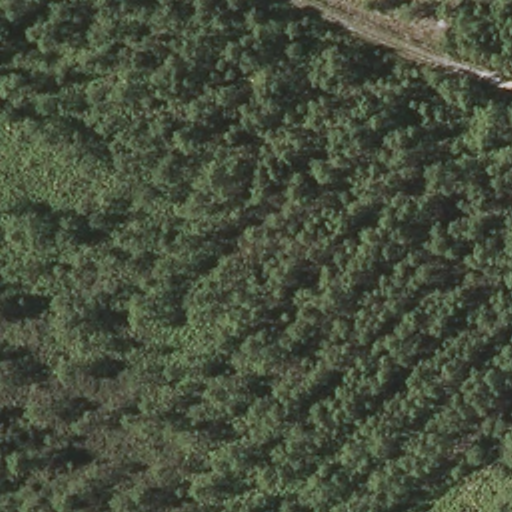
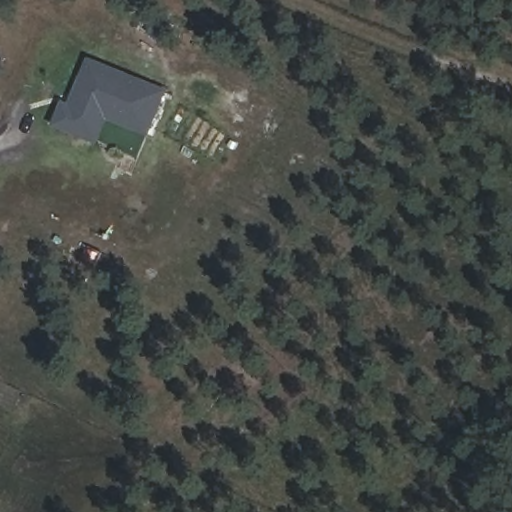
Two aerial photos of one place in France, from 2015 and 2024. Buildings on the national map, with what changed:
new [(99,145),(54,127),(63,102),(70,105),(89,58),(169,89),(150,137),(109,121),(99,145)]

